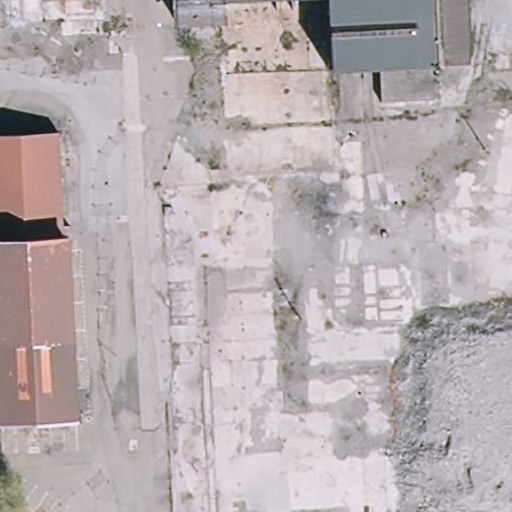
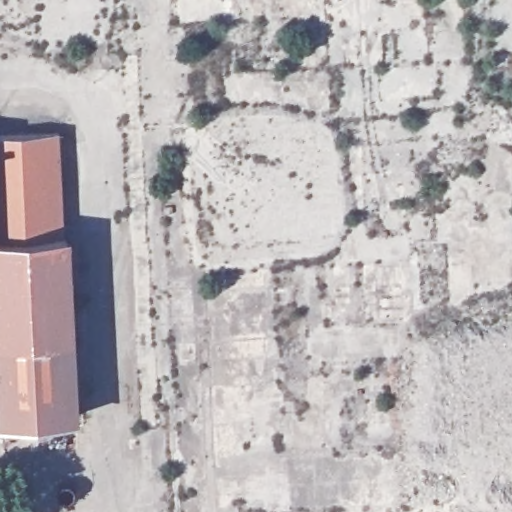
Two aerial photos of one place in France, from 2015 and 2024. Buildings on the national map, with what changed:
demolished [(218,11),(218,17),(173,19),(172,0),(217,0),(218,11)]
demolished [(321,0),(460,0),(463,56),(428,57),(429,94),(377,97),(375,65),(408,64),(408,59),(324,63),(321,0)]
unchanged [(60,231),(69,412),(0,415),(0,130),(53,127),(58,231),(60,231)]

